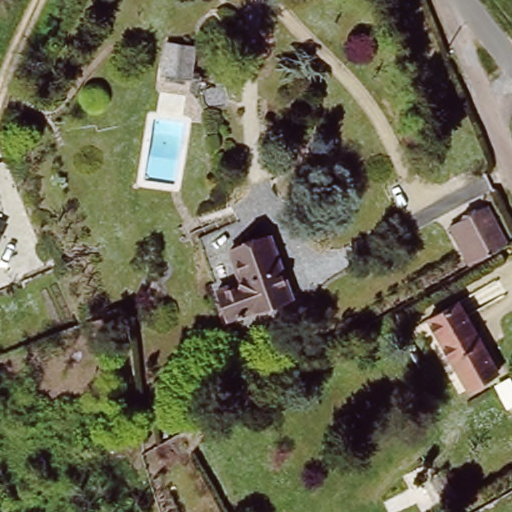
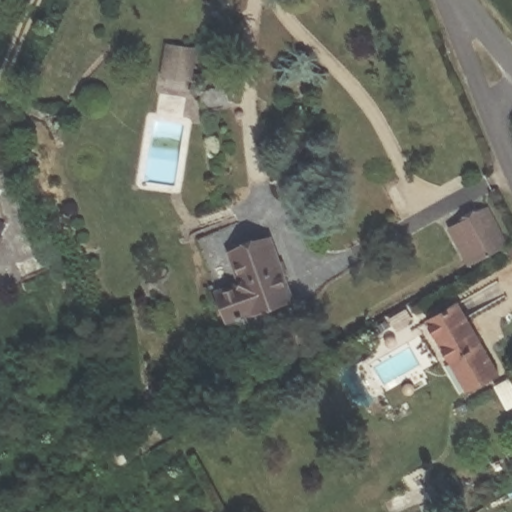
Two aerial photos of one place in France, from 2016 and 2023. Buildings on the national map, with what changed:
unchanged [(164,40),(201,45),(194,82),(160,75),(164,40)]
unchanged [(486,209),(503,245),(480,258),(464,219),(486,209)]
unchanged [(6,220),(0,233),(0,218),(6,220)]
unchanged [(217,284),(240,276),(230,245),(273,232),(291,298),(251,310),(250,306),(226,314),(217,284)]
unchanged [(461,302),(496,371),(467,386),(432,318),(461,302)]

